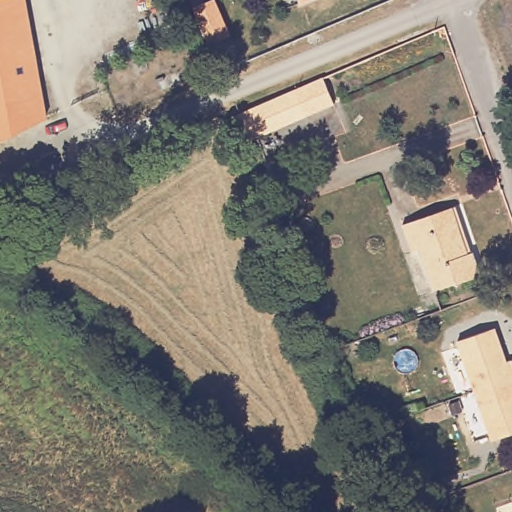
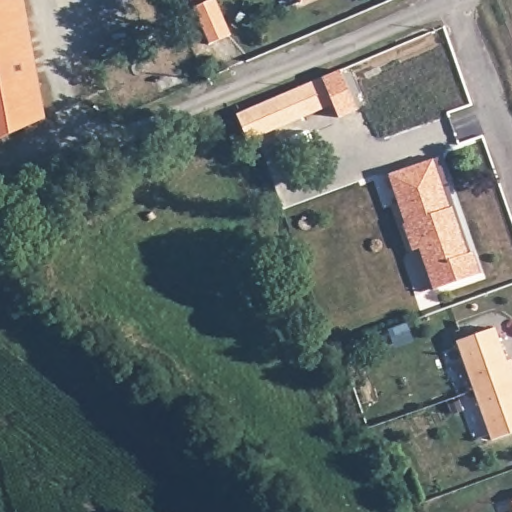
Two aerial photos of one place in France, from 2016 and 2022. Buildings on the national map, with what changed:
unchanged [(0,139),(0,0),(24,0),(47,117),(0,139)]
new [(219,0),(233,37),(212,45),(198,8),(219,0)]
unchanged [(312,80),(324,105),(265,131),(256,107),(255,105),(312,80)]
new [(387,175),(434,160),(450,207),(405,224),(387,175)]
unchanged [(467,254),(471,252),(479,274),(431,290),(416,250),(409,251),(400,226),(450,207),(467,254)]
unchanged [(504,362),(509,360),(512,369),(512,432),(489,440),(471,391),(453,342),(492,328),(504,362)]

